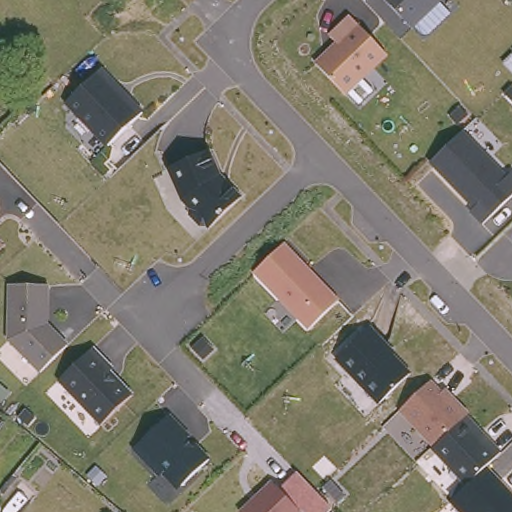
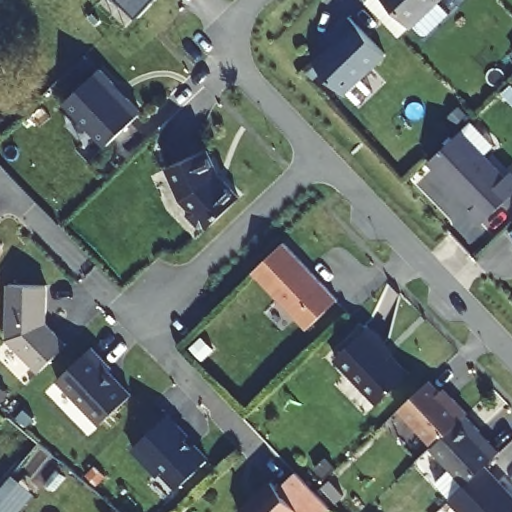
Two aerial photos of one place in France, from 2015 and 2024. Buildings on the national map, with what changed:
new [(115,0),(155,0),(132,20),(115,0)]
unchanged [(383,0),(438,0),(409,27),(383,0)]
unchanged [(344,93),(315,62),(336,42),(329,35),(349,15),(386,53),(344,93)]
unchanged [(65,102),(99,69),(113,83),(113,90),(120,97),(127,97),(141,112),(107,145),(65,102)]
unchanged [(461,132),(472,121),(495,145),(484,156),(505,177),(500,182),(511,194),(482,223),(470,210),(473,206),(455,188),(429,161),(443,148),(461,132)]
unchanged [(206,225),(199,225),(190,215),(190,208),(182,201),(167,167),(207,150),(219,175),(240,197),(215,222),(208,228),(206,225)]
unchanged [(306,329),(252,272),(284,242),(337,299),(306,329)]
unchanged [(0,251),(0,249),(1,250),(0,251)]
unchanged [(45,313),(45,322),(67,345),(40,371),(8,338),(9,284),(47,285),(47,313),(45,313)]
unchanged [(409,373),(378,403),(335,358),(366,328),(409,373)]
unchanged [(57,379),(92,346),(111,367),(109,370),(131,394),(100,424),(57,379)]
unchanged [(454,424),(432,445),(412,425),(406,417),(397,408),(428,379),(431,382),(447,399),(451,396),(466,412),(454,424)]
unchanged [(454,424),(466,412),(504,448),(484,468),(512,498),(512,512),(460,512),(447,498),(462,483),(432,445),(454,424)]
unchanged [(169,415),(209,459),(174,491),(135,449),(169,415)]
unchanged [(330,507),(325,512),(240,512),(239,510),(271,480),(280,489),(297,473),(330,507)]

